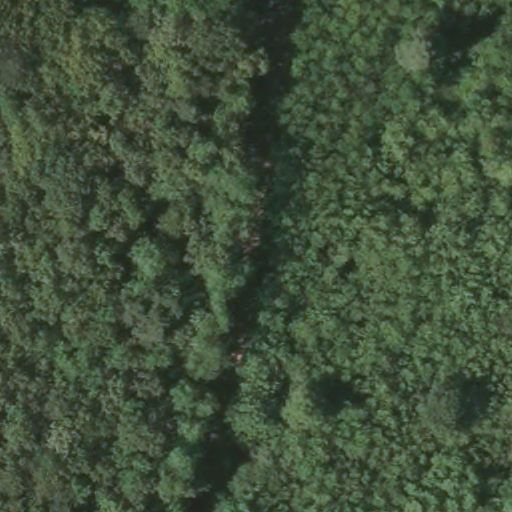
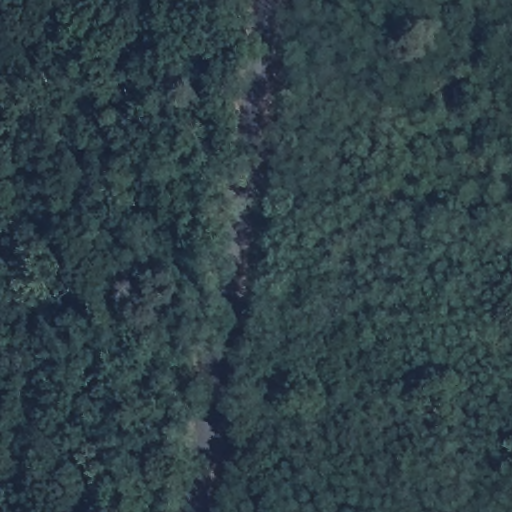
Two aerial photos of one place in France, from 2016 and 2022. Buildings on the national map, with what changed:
[]

